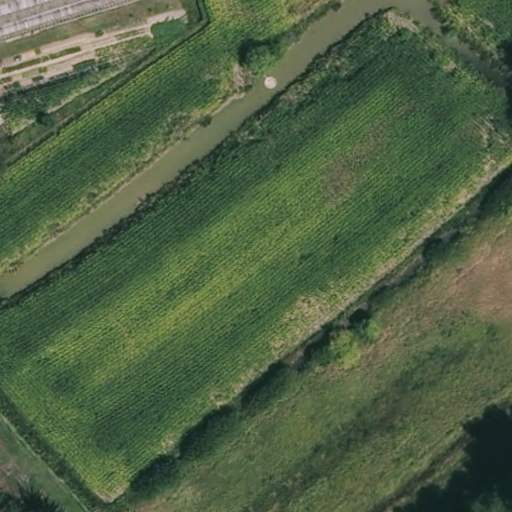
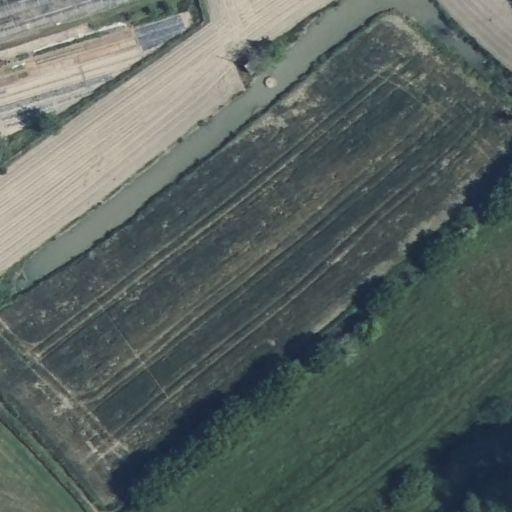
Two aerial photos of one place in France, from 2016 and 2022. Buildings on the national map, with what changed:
unchanged [(0,0),(123,0),(0,38),(0,0)]

